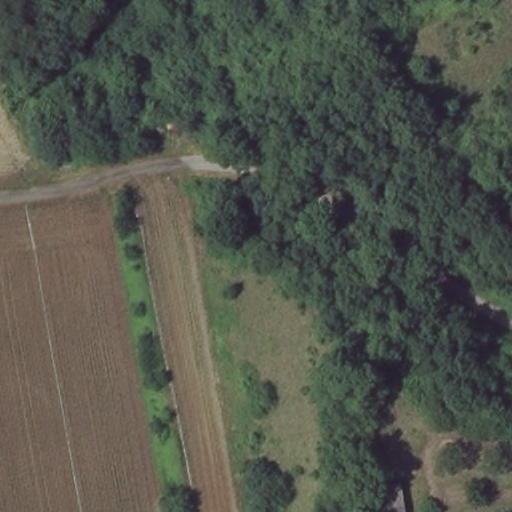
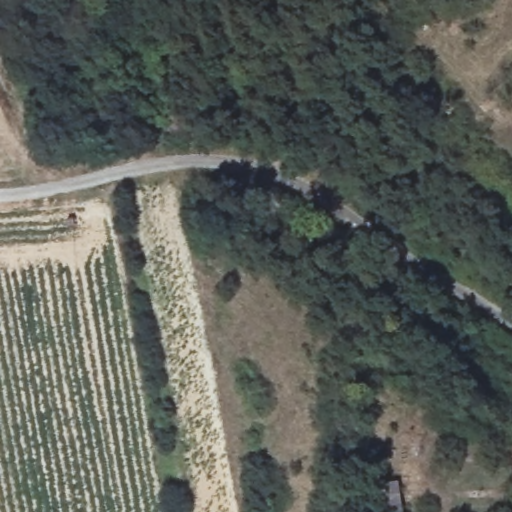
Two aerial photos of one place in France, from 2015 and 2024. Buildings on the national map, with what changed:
unchanged [(397,483),(400,512),(383,512),(377,485),(397,483)]

